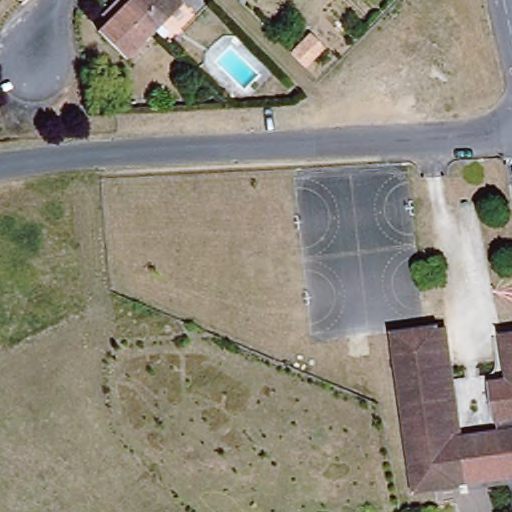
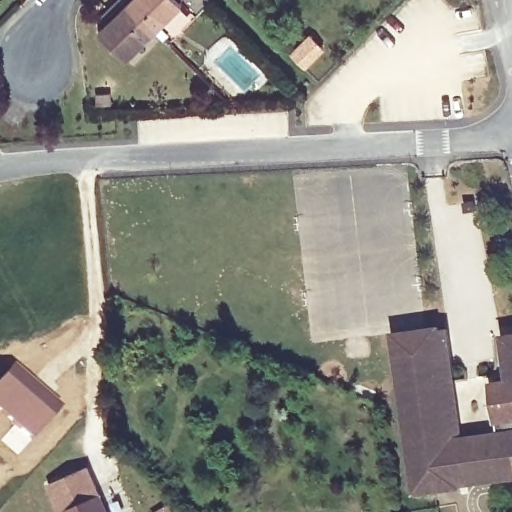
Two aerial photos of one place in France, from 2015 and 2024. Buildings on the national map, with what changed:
unchanged [(112,19),(106,13),(110,10),(120,0),(136,0),(163,28),(131,59),(102,29),(112,19)]
unchanged [(173,31),(169,35),(163,28),(136,0),(190,0),(166,24),(173,31)]
unchanged [(293,50),(306,36),(310,32),(322,44),(319,47),(304,63),(293,50)]
unchanged [(451,326),(467,437),(473,482),(464,483),(444,327),(451,326)]
unchanged [(464,483),(466,486),(419,492),(397,333),(444,327),(464,483)]
unchanged [(512,334),(512,376),(507,335),(512,334)]
new [(11,363),(59,408),(18,455),(0,438),(13,424),(11,423),(9,425),(0,417),(0,376),(11,363)]
unchanged [(505,431),(504,421),(501,421),(496,381),(512,380),(512,477),(473,482),(467,437),(505,431)]
new [(91,466),(111,512),(71,512),(70,510),(66,512),(65,512),(53,484),(91,466)]

